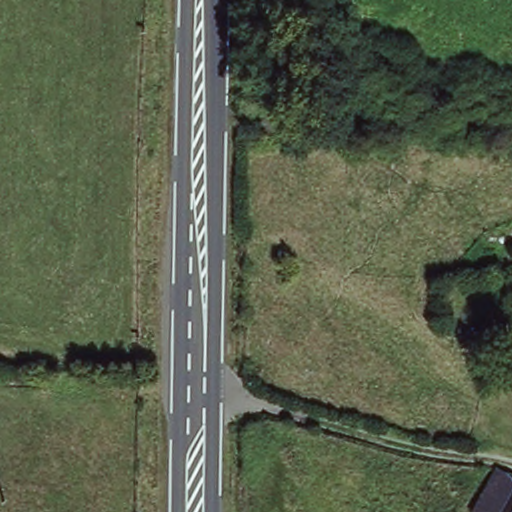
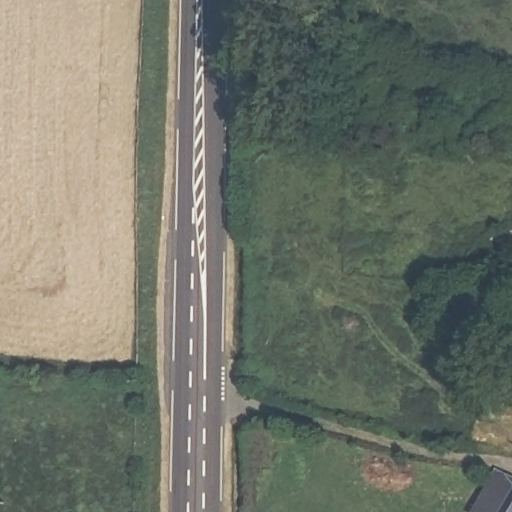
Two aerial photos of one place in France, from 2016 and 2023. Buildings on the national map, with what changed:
unchanged [(512,475),(512,512),(476,512),(498,468),(512,475)]

